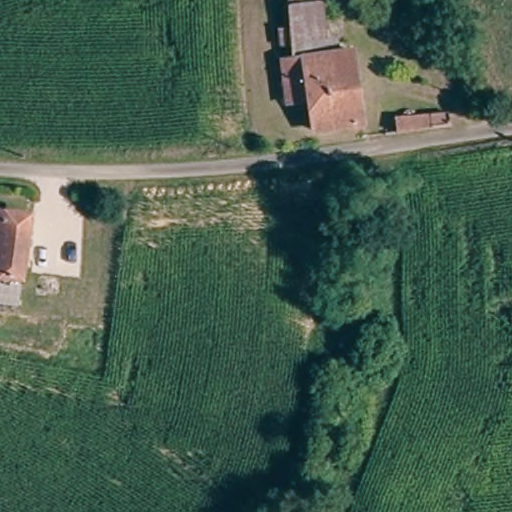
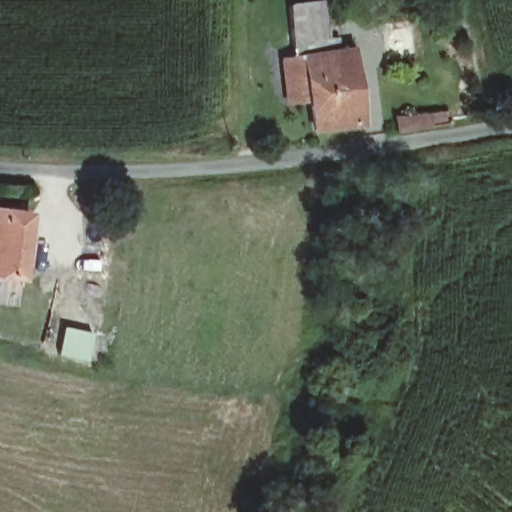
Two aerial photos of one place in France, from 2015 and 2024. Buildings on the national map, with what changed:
unchanged [(335,36),(336,50),(350,49),(360,122),(311,126),(306,95),(280,97),(276,57),(293,55),(291,42),(276,43),(275,25),(288,24),(286,2),(286,0),(302,0),(302,1),(310,0),(318,0),(323,37),(335,36)]
unchanged [(392,116),(445,109),(447,120),(393,130),(392,116)]
unchanged [(34,221),(25,280),(0,276),(0,216),(34,221)]

